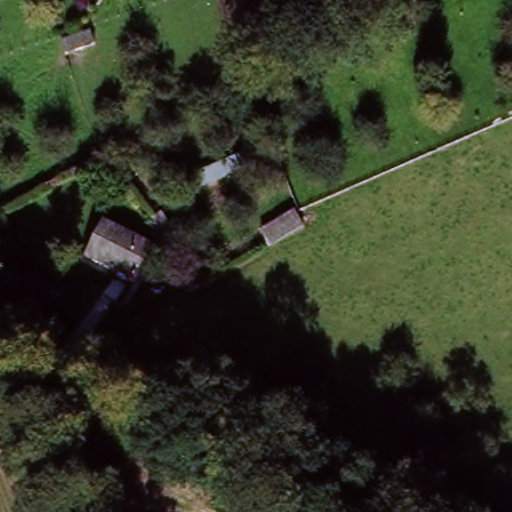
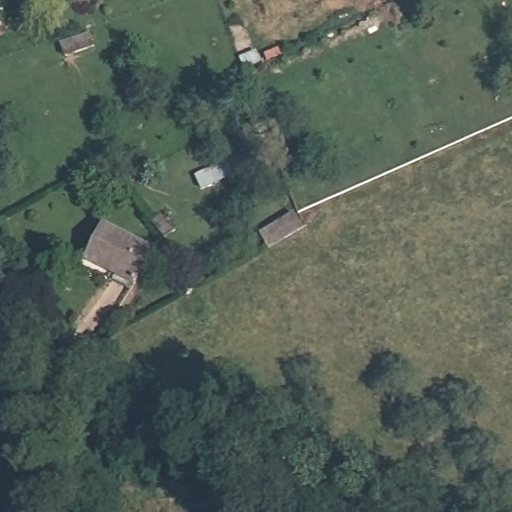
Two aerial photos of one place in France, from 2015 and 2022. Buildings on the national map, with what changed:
unchanged [(99,48),(52,67),(43,50),(57,42),(60,47),(95,32),(99,48)]
unchanged [(267,250),(260,234),(296,214),(303,229),(267,250)]
unchanged [(107,220),(154,249),(131,285),(83,257),(107,220)]

